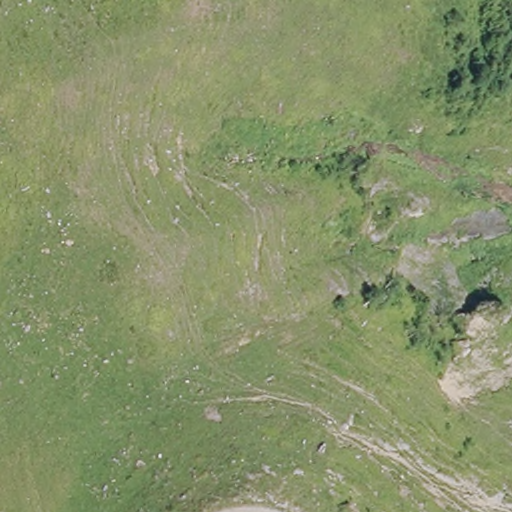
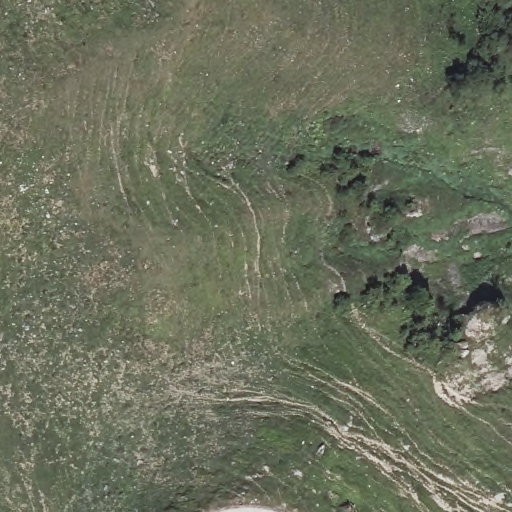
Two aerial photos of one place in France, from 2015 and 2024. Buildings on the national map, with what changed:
[]

